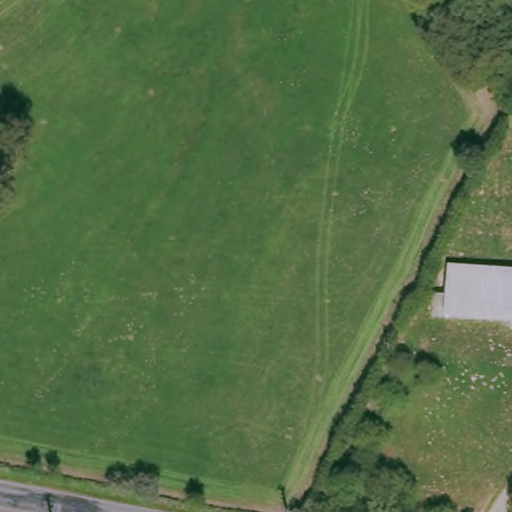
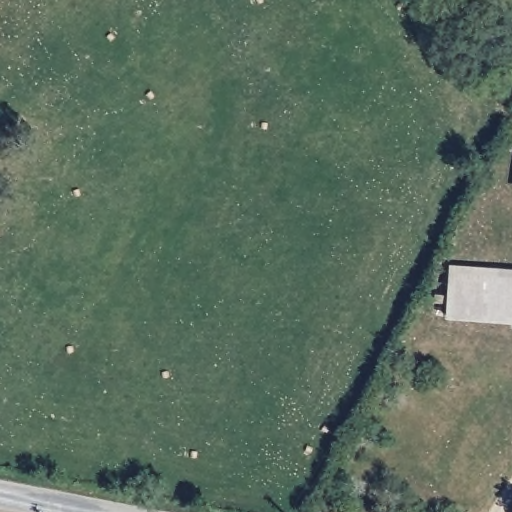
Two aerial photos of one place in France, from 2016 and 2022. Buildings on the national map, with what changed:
unchanged [(512,273),(512,316),(442,313),(445,269),(512,273)]

